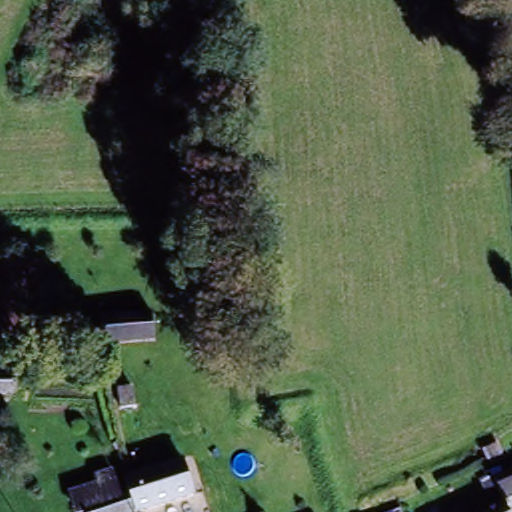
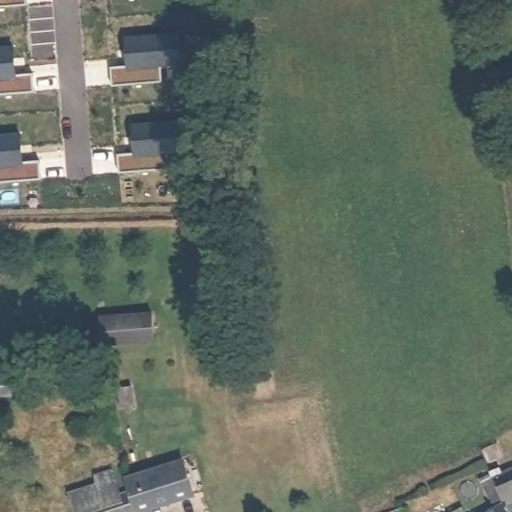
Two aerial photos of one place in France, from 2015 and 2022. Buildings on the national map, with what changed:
new [(0,7),(0,0),(24,0),(24,5),(0,7)]
new [(183,33),(186,64),(128,67),(125,37),(183,33)]
new [(11,45),(15,73),(29,72),(32,92),(0,95),(0,47),(11,45)]
new [(188,120),(191,147),(134,156),(130,127),(188,120)]
new [(17,134),(21,162),(37,160),(40,179),(0,184),(0,136),(17,134)]
unchanged [(149,307),(151,334),(102,338),(100,310),(149,307)]
unchanged [(16,374),(16,394),(0,394),(0,374),(16,374)]
unchanged [(76,508),(72,493),(97,483),(96,475),(112,471),(119,494),(130,492),(128,484),(127,479),(154,471),(182,462),(186,474),(193,494),(138,512),(84,512),(82,507),(76,508)]
unchanged [(491,506),(480,479),(476,470),(485,466),(489,474),(509,467),(512,466),(512,510),(507,512),(476,512),(491,506)]
unchanged [(461,502),(466,512),(438,512),(461,502)]
unchanged [(398,506),(400,511),(401,512),(382,512),(398,506)]

